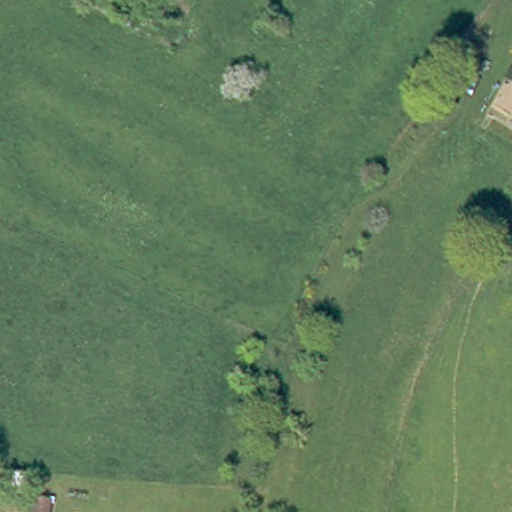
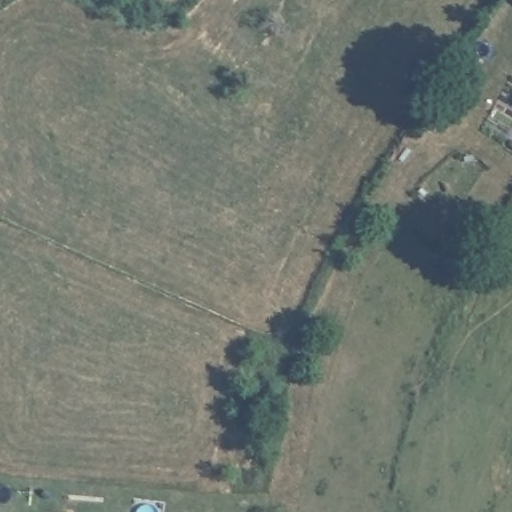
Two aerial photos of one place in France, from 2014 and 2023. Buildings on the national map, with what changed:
unchanged [(449,80),(459,66),(467,59),(479,69),(473,76),(461,90),(449,80)]

